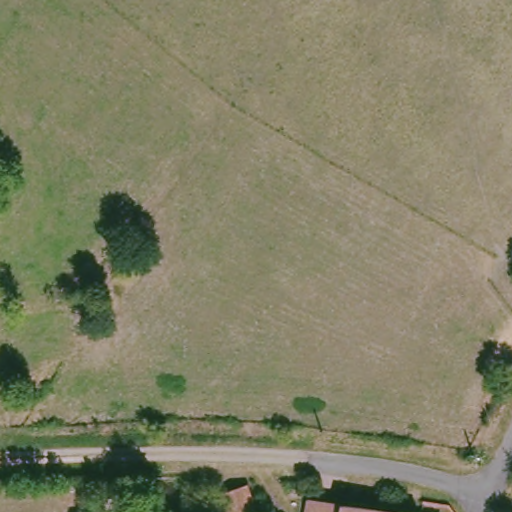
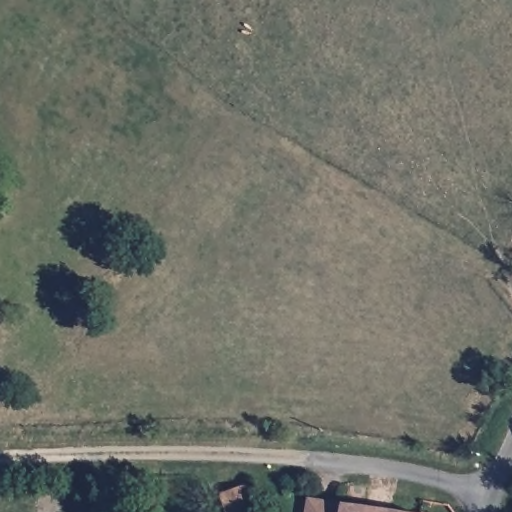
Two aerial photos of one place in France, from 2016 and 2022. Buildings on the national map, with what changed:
unchanged [(256,512),(231,512),(225,491),(248,485),(256,512)]
unchanged [(392,512),(304,512),(305,499),(392,512)]

